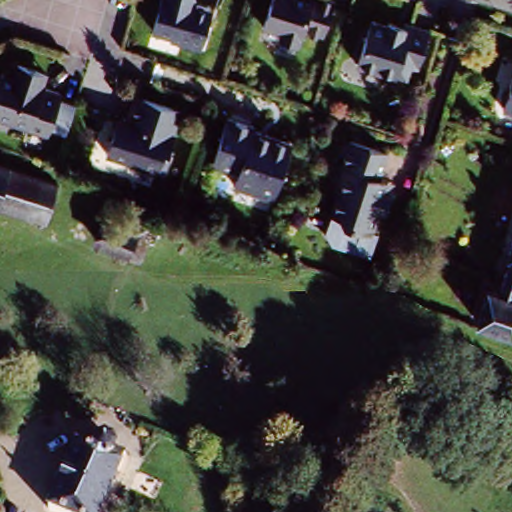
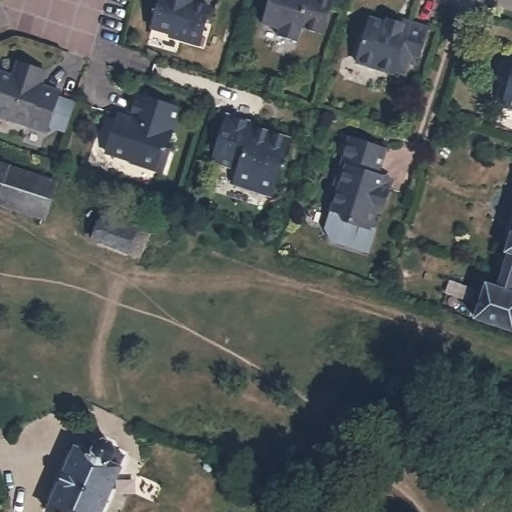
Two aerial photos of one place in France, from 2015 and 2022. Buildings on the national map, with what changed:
unchanged [(211,5),(201,40),(154,26),(163,0),(195,0),(211,5)]
unchanged [(328,32),(307,25),(302,40),(282,34),(284,27),(267,22),(275,0),(339,0),(328,32)]
unchanged [(425,26),(410,61),(403,59),(397,71),(388,68),(387,71),(353,60),(370,16),(384,21),(385,17),(395,20),(401,22),(402,19),(425,26)]
unchanged [(42,126),(0,113),(0,65),(8,67),(12,54),(36,61),(42,64),(37,79),(55,85),(42,126)]
unchanged [(505,94),(502,90),(505,79),(510,76),(512,70),(512,102),(503,99),(505,94)]
unchanged [(152,169),(135,164),(136,161),(128,159),(127,161),(102,152),(114,119),(120,115),(123,116),(130,94),(176,109),(163,148),(166,149),(162,161),(159,171),(152,169)]
unchanged [(252,184),(235,178),(239,164),(212,155),(227,110),(255,119),(253,122),(290,134),(274,185),(272,190),(252,184)]
unchanged [(381,170),(395,175),(391,187),(385,206),(381,205),(374,225),(379,227),(372,249),(339,239),(330,226),(336,209),(343,185),(339,184),(354,136),(388,147),(381,170)]
unchanged [(63,192),(50,227),(0,209),(0,169),(63,192)]
unchanged [(95,241),(105,216),(110,205),(123,210),(151,220),(147,232),(138,257),(95,241)]
unchanged [(497,288),(509,254),(506,252),(512,234),(512,332),(474,319),(485,285),(497,288)]
unchanged [(95,447),(102,445),(111,449),(111,456),(123,461),(102,512),(50,512),(75,450),(91,456),(95,447)]

